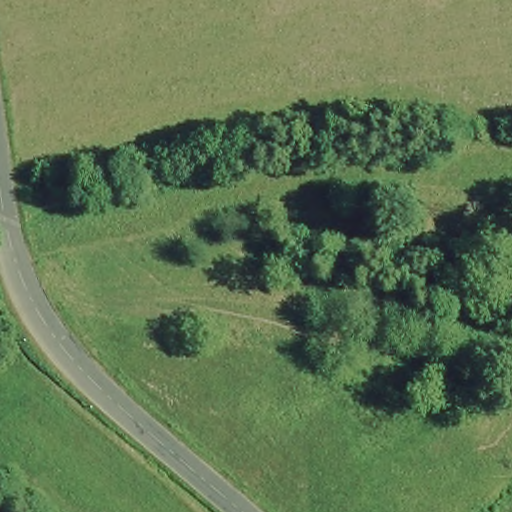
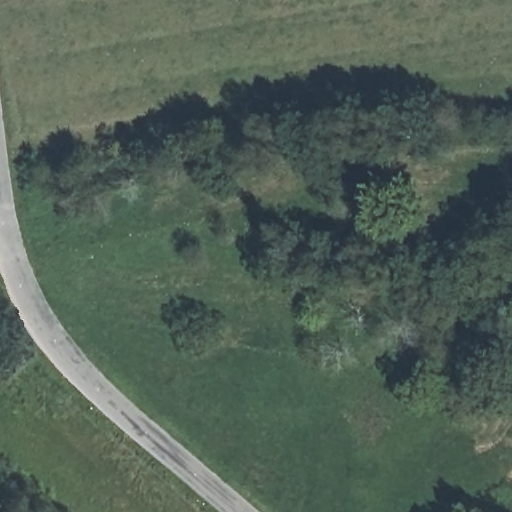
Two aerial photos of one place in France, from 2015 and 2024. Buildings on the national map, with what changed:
[]

